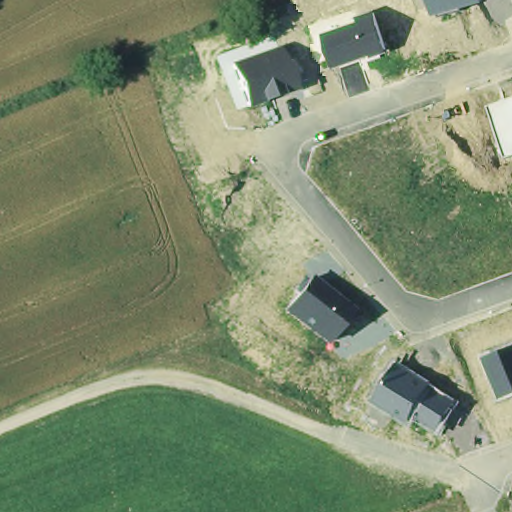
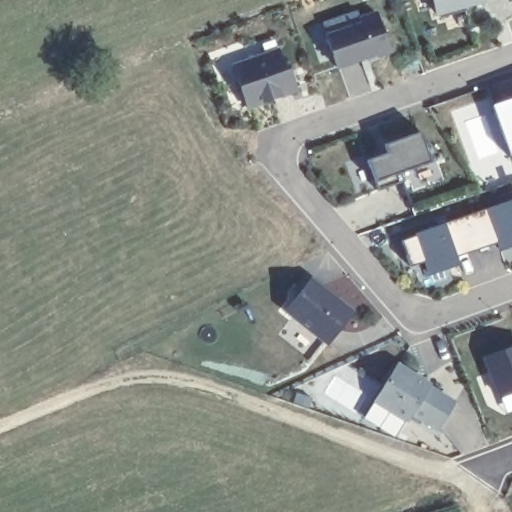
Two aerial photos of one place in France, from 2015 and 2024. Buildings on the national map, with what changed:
unchanged [(435,18),(430,0),(483,0),(484,3),(435,18)]
unchanged [(390,53),(335,70),(325,36),(360,24),(358,17),(378,11),(390,53)]
unchanged [(298,93),(247,111),(230,65),(280,47),(298,93)]
unchanged [(493,106),(512,99),(512,157),(493,106)]
new [(388,151),(385,143),(418,131),(430,162),(399,174),(402,182),(376,191),(365,160),(388,151)]
new [(498,245),(457,259),(458,266),(427,276),(422,264),(410,268),(400,240),(442,227),(441,224),(487,208),(487,212),(512,203),(512,248),(500,252),(498,245)]
unchanged [(327,348),(282,313),(310,277),(355,312),(327,348)]
unchanged [(480,356),(512,344),(512,396),(497,402),(480,356)]
unchanged [(438,438),(412,421),(408,426),(367,401),(395,357),(462,402),(438,438)]

